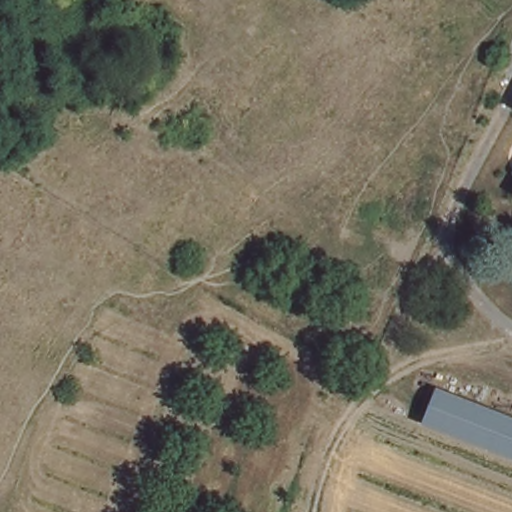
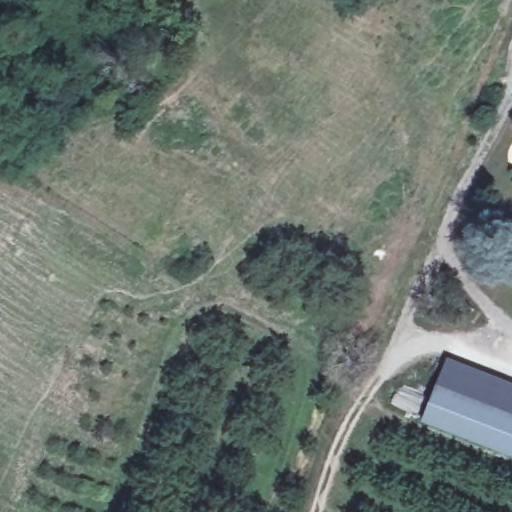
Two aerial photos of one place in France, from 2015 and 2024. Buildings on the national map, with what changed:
new [(438,391),(448,358),(512,384),(512,419),(438,391)]
unchanged [(426,421),(438,391),(512,419),(512,453),(505,450),(426,421)]

